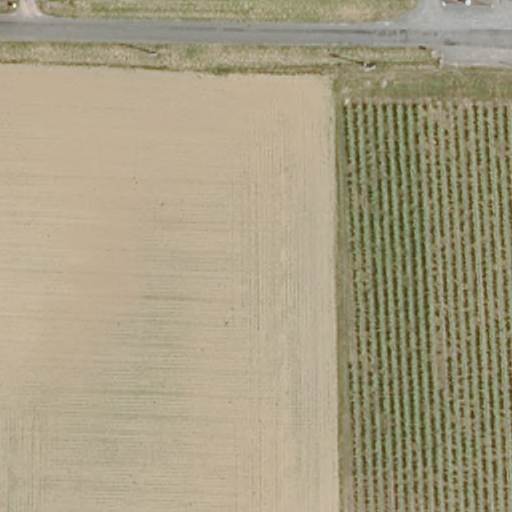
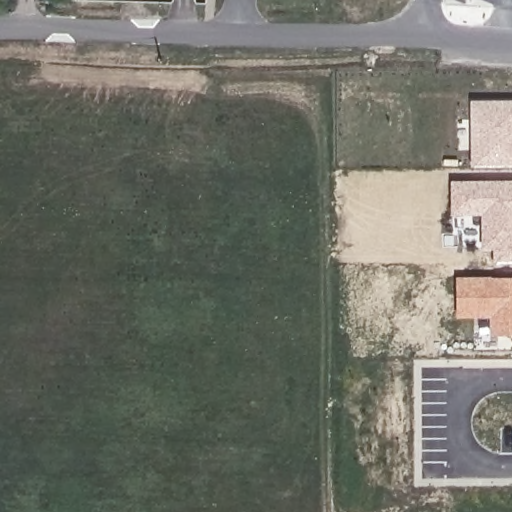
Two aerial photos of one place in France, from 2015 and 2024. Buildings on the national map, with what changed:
new [(512,100),(512,166),(471,166),(470,100),(512,100)]
new [(481,249),(481,215),(450,215),(450,180),(512,180),(512,262),(493,262),(493,249),(481,249)]
new [(456,316),(455,276),(512,276),(512,335),(490,335),(490,317),(456,316)]

